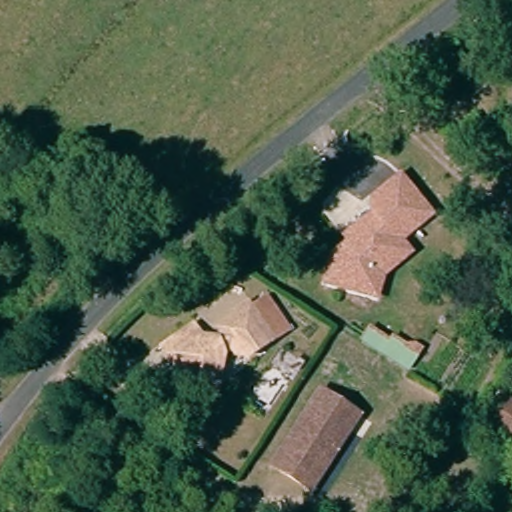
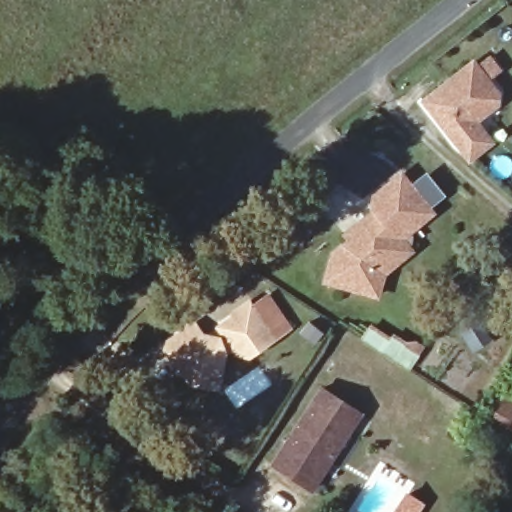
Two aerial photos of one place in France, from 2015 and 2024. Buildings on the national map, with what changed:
new [(419,99),(473,57),(477,60),(489,53),(501,69),(490,79),(500,92),(498,105),(480,121),(495,142),(469,163),(419,99)]
unchanged [(385,295),(332,283),(338,257),(355,242),(348,236),(360,226),(378,210),(375,207),(377,196),(403,174),(432,206),(435,210),(420,224),(405,237),(408,241),(416,249),(390,273),(385,295)]
unchanged [(180,328),(190,320),(203,333),(218,322),(250,298),(271,326),(247,345),(235,344),(230,338),(221,345),(220,367),(207,378),(190,375),(184,366),(182,364),(164,342),(180,328)]
new [(378,323),(399,335),(401,331),(415,339),(415,338),(425,335),(431,339),(417,363),(371,334),(378,323)]
unchanged [(512,385),(512,441),(485,425),(510,384),(512,385)]
unchanged [(318,387),(357,411),(308,487),(270,463),(318,387)]

